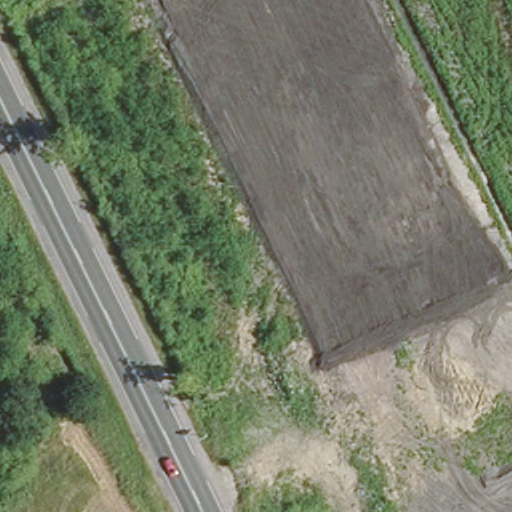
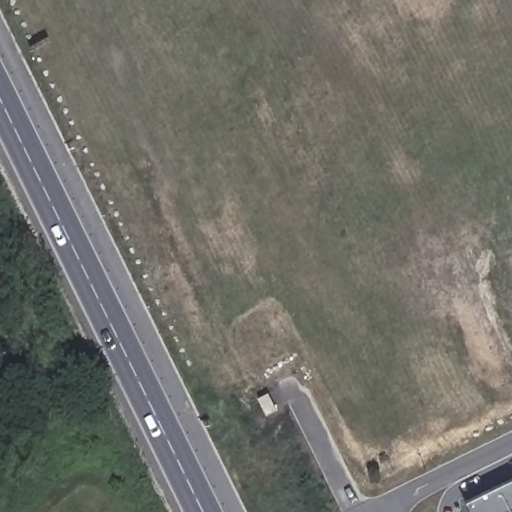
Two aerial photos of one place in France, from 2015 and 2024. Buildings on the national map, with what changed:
new [(512,512),(466,512),(464,507),(512,483),(512,512)]

